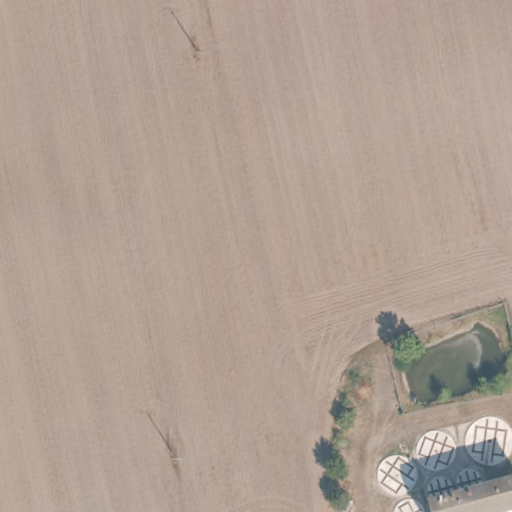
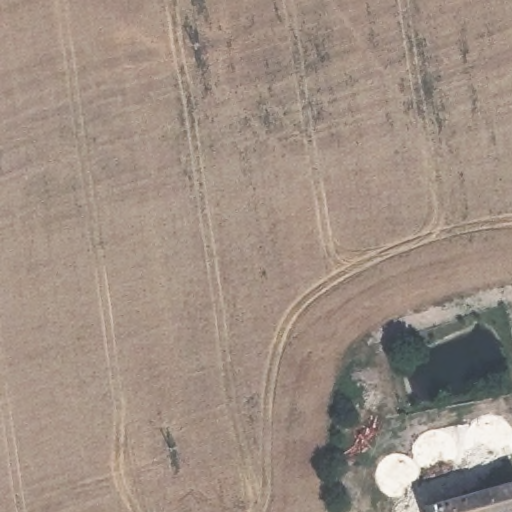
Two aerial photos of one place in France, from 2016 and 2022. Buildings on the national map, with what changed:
unchanged [(416,436),(480,415),(500,415),(512,428),(512,456),(507,464),(490,469),(487,490),(442,502),(428,506),(430,512),(395,512),(396,499),(386,495),(376,481),(383,456),(416,436)]
unchanged [(487,490),(512,483),(512,512),(430,512),(428,506),(487,490)]

